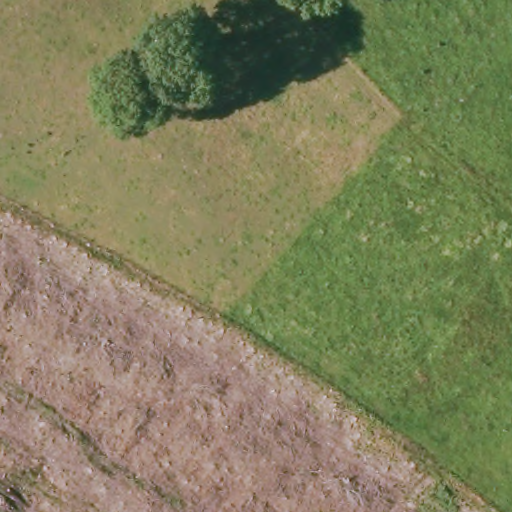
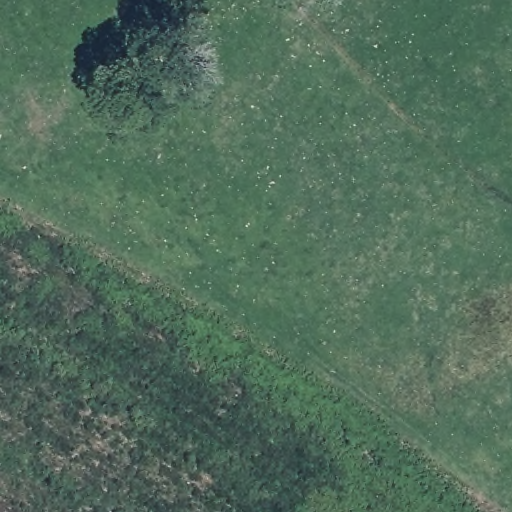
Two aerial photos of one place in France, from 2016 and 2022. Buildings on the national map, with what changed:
[]

